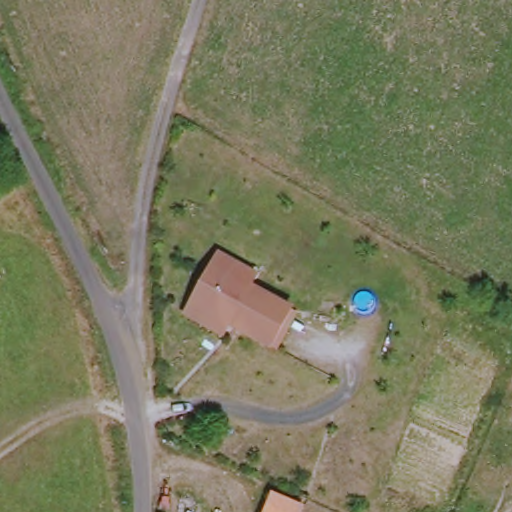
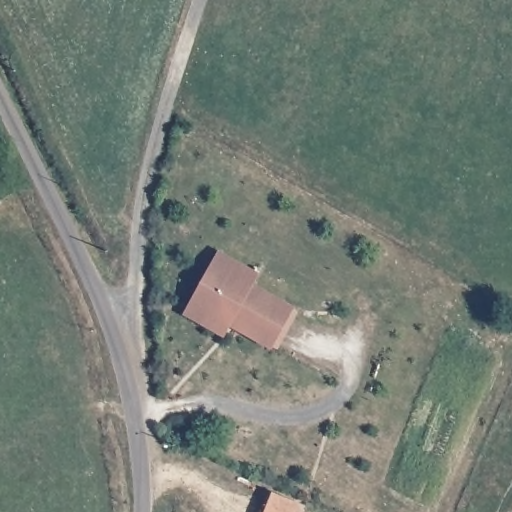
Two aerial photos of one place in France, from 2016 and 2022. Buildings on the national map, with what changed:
unchanged [(186,307),(193,296),(214,259),(220,248),(257,272),(251,283),(291,308),(271,342),(229,317),(222,331),(186,307)]
unchanged [(305,508),(304,512),(266,512),(274,493),(305,508)]

